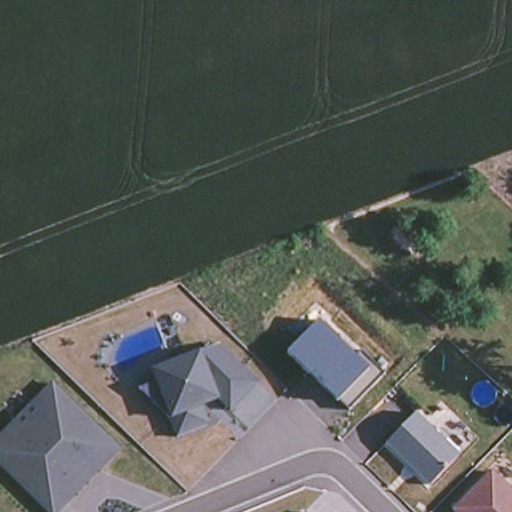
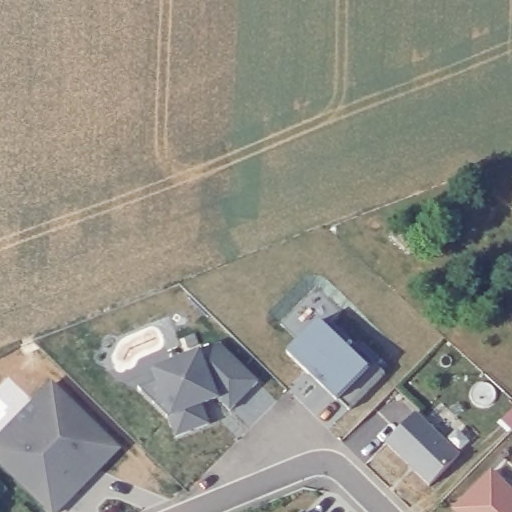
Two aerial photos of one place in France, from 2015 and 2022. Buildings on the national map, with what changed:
unchanged [(321,320),(352,354),(358,349),(380,372),(349,408),(339,400),(288,352),(321,320)]
unchanged [(170,417),(140,388),(158,381),(154,371),(172,363),(221,344),(260,381),(232,409),(212,391),(202,401),(210,424),(182,435),(178,437),(170,417)]
unchanged [(0,461),(0,437),(16,421),(32,437),(50,418),(34,402),(52,383),(120,448),(99,469),(77,491),(56,512),(53,512),(0,461)]
unchanged [(383,442),(414,411),(457,454),(427,484),(414,471),(406,463),(383,442)]
unchanged [(461,505),(494,471),(512,488),(512,512),(461,512),(457,509),(461,505)]

